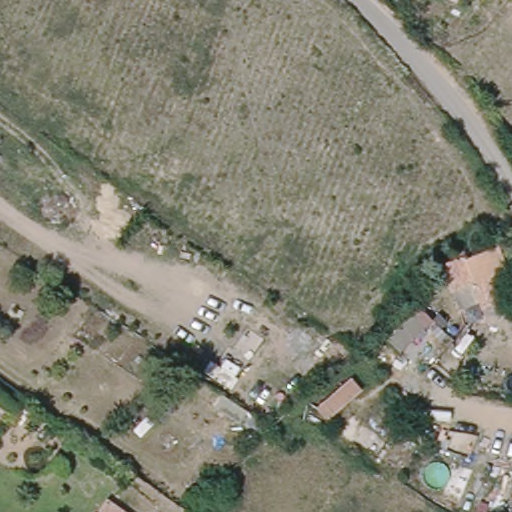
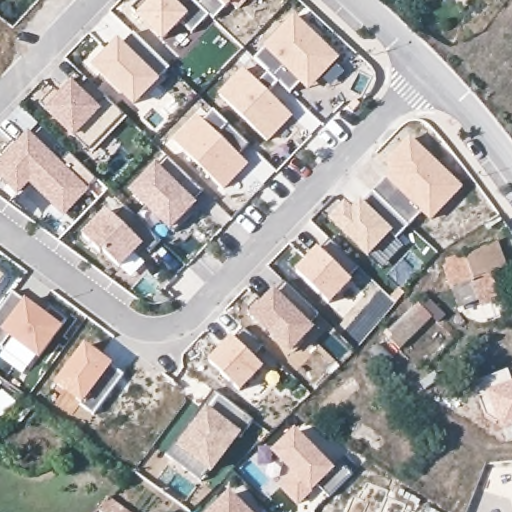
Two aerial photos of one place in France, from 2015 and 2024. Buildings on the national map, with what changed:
new [(241,12),(232,2),(227,8),(216,20),(196,0),(253,0),(241,12)]
new [(341,61),(311,91),(303,84),(294,94),(281,83),(271,95),(295,118),(271,143),(221,94),(244,69),(260,85),(270,74),(256,60),(296,16),(341,61)]
new [(120,41),(126,47),(136,35),(171,70),(161,83),(136,108),(94,68),(120,41)]
new [(74,83),(82,90),(90,82),(123,115),(91,150),(79,137),(76,140),(46,111),(74,83)]
new [(206,122),(215,111),(251,146),(240,157),(248,164),(223,189),(176,143),(201,118),(206,122)]
new [(71,155),(97,180),(88,189),(91,192),(66,218),(31,183),(18,196),(0,178),(0,164),(30,132),(62,164),(71,155)]
new [(374,193),(373,192),(386,179),(393,171),(385,164),(410,137),(463,188),(431,222),(422,213),(409,226),(394,211),(374,193)]
new [(204,193),(196,203),(198,206),(171,234),(129,194),(156,165),(160,169),(168,157),(204,193)]
new [(354,215),(374,193),(409,226),(397,239),(391,234),(369,256),(333,221),(346,207),(354,215)]
new [(118,220),(127,210),(162,244),(151,255),(144,248),(123,271),(104,251),(101,254),(83,237),(108,211),(118,220)]
new [(321,250),(331,240),(362,271),(354,281),(332,305),(296,272),(319,249),(321,250)]
unchanged [(499,243),(510,269),(493,274),(501,298),(481,305),(477,297),(463,303),(455,284),(450,285),(442,263),(446,262),(444,256),(477,247),(479,250),(499,243)]
new [(0,285),(0,273),(5,277),(0,285)]
new [(275,291),(279,295),(286,285),(319,317),(311,324),(316,330),(291,355),(251,316),(275,291)]
new [(28,302),(47,316),(52,310),(69,323),(64,330),(40,361),(9,338),(3,348),(0,346),(0,313),(14,294),(24,304),(28,302)]
unchanged [(434,315),(398,349),(383,335),(419,300),(434,315)]
new [(233,338),(236,341),(246,329),(266,348),(256,359),(268,371),(243,395),(209,362),(233,338)]
new [(512,381),(512,428),(502,431),(498,423),(496,424),(486,416),(476,383),(508,371),(512,381)]
unchanged [(314,409),(351,376),(364,393),(327,422),(314,409)]
new [(216,392),(256,423),(245,438),(239,435),(204,484),(167,456),(216,392)]
new [(344,467),(351,474),(329,495),(323,486),(321,484),(297,506),(276,484),(289,472),(274,456),(271,452),(296,429),(337,471),(338,472),(344,467)]
new [(370,485),(390,493),(388,499),(407,507),(405,511),(406,512),(349,512),(354,498),(360,500),(370,485)]
new [(212,512),(232,493),(250,512),(212,512)]
unchanged [(129,512),(92,512),(109,494),(129,512)]

